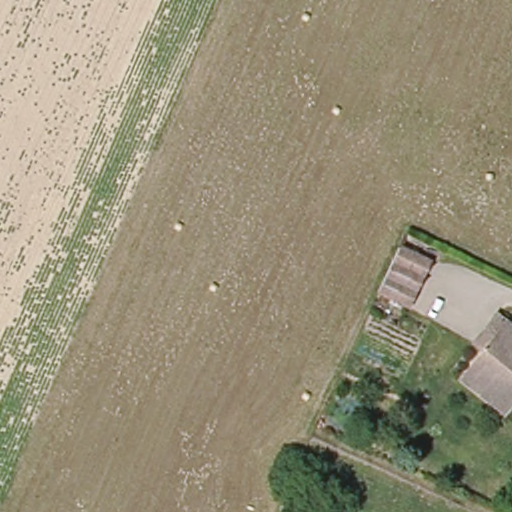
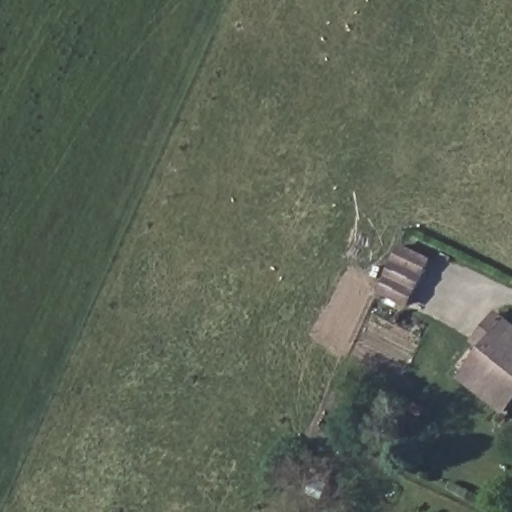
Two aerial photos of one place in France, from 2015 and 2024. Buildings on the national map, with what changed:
unchanged [(402,303),(373,291),(392,249),(418,260),(402,303)]
unchanged [(468,386),(491,358),(478,347),(499,320),(512,330),(512,415),(508,419),(468,386)]

